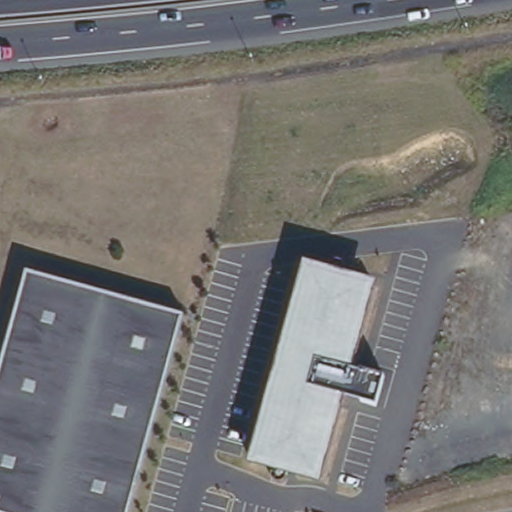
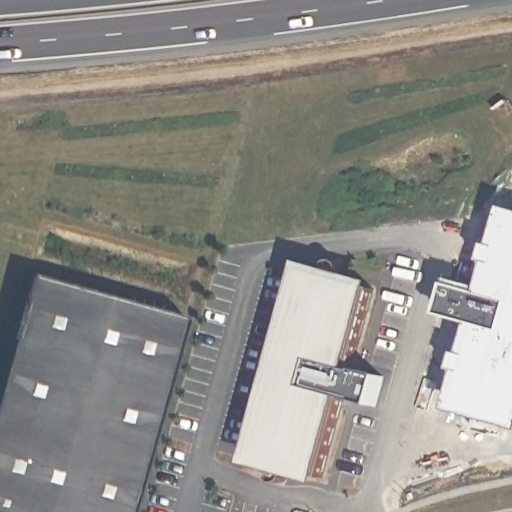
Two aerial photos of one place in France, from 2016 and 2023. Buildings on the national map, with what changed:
new [(447,318),(457,283),(488,290),(512,217),(512,426),(455,412),(480,327),(447,318)]
unchanged [(351,368),(384,377),(377,403),(344,397),(321,482),(248,464),(302,264),(376,282),(351,368)]
unchanged [(21,272),(178,315),(124,512),(0,512),(0,349),(21,272)]

